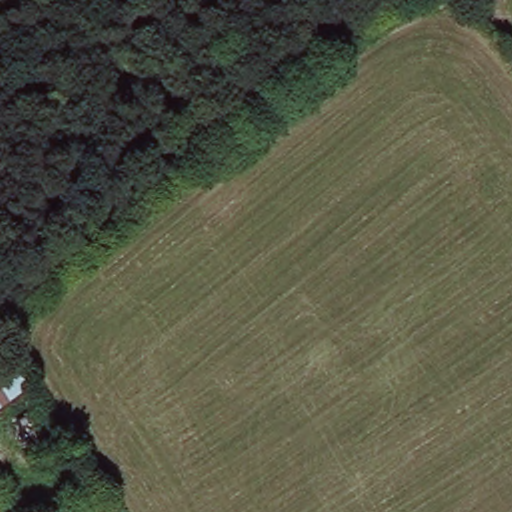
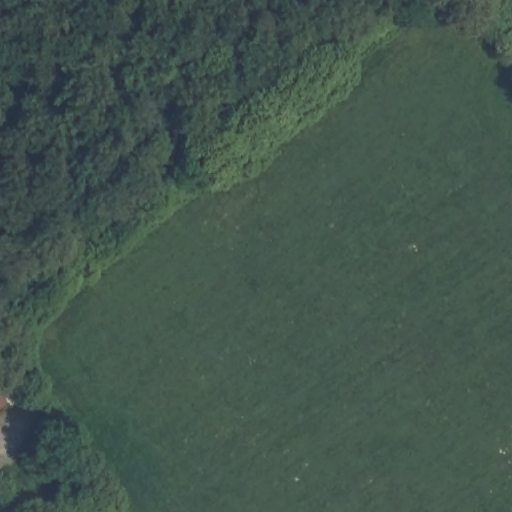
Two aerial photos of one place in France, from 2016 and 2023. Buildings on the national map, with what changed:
unchanged [(0,408),(0,340),(1,340),(30,388),(0,408)]

